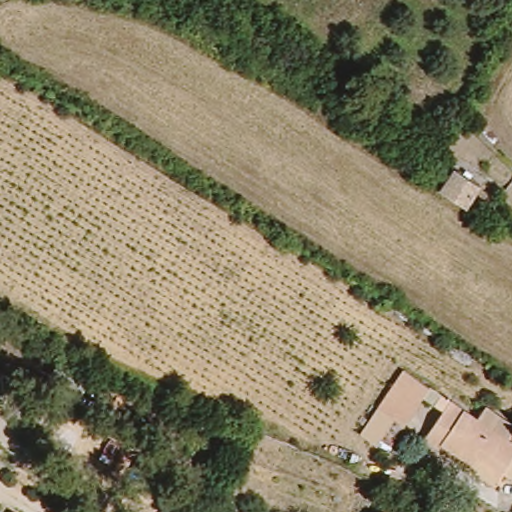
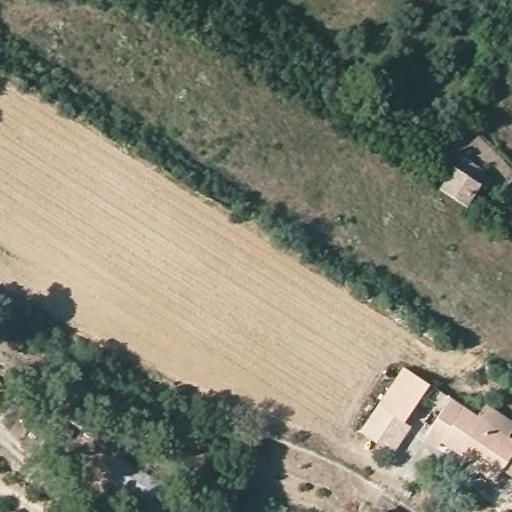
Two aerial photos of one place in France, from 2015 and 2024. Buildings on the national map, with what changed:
unchanged [(475,184),(461,205),(438,191),(453,170),(475,184)]
unchanged [(405,423),(380,406),(405,368),(431,386),(405,423)]
unchanged [(470,467),(472,464),(443,444),(440,447),(426,437),(445,409),(435,403),(442,393),(451,399),(512,440),(512,455),(502,470),(494,482),(470,467)]
unchanged [(405,423),(391,456),(356,435),(380,406),(405,423)]
unchanged [(6,512),(6,511),(8,512),(6,512)]
unchanged [(384,512),(382,512),(383,511),(384,512)]

